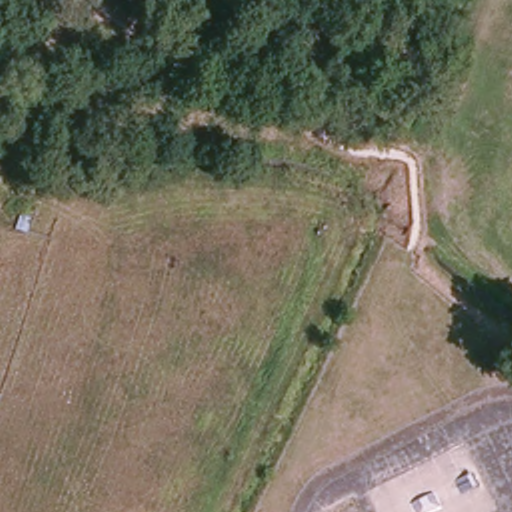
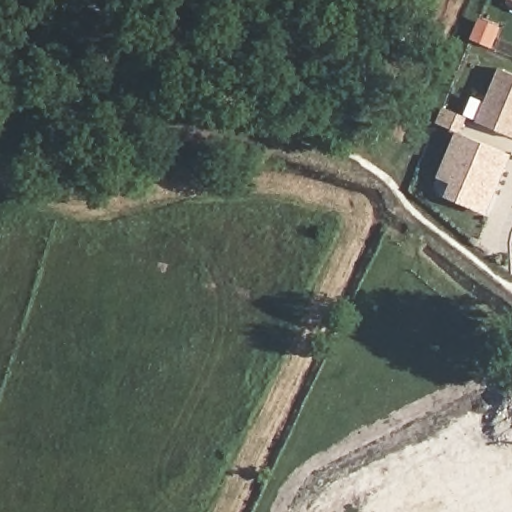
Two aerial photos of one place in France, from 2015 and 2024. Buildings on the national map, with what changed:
new [(502,68),(512,72),(512,136),(479,122),(502,68)]
new [(462,134),(512,155),(488,212),(453,197),(460,182),(445,175),(462,134)]
demolished [(15,230),(23,209),(34,212),(28,232),(15,230)]

